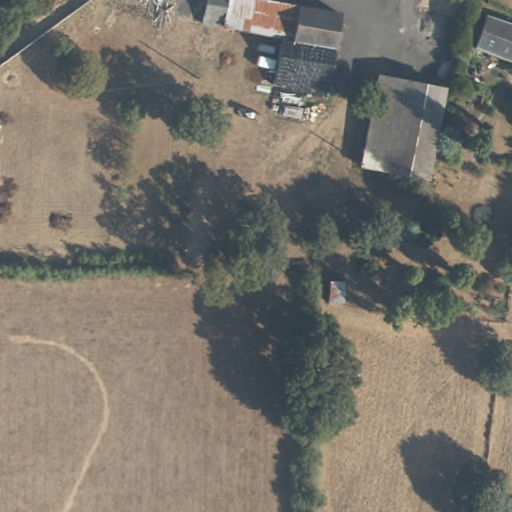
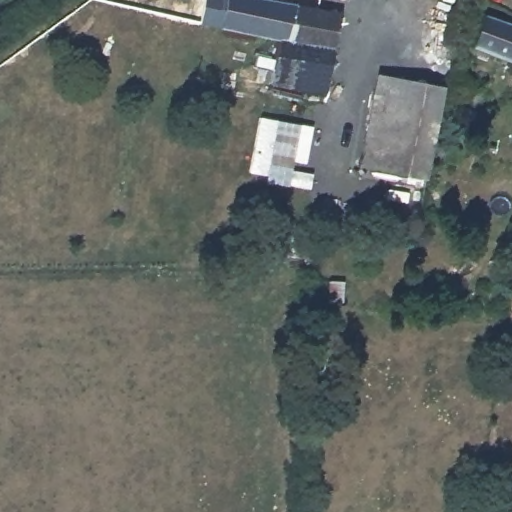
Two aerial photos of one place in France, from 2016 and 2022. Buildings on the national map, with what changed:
unchanged [(205,0),(316,0),(343,5),(338,41),(297,34),(298,29),(283,26),(203,12),(205,0)]
unchanged [(462,47),(474,12),(512,26),(512,65),(462,47)]
unchanged [(332,89),(274,84),(283,26),(298,29),(297,34),(338,41),(332,89)]
unchanged [(449,76),(432,175),(357,165),(374,68),(449,76)]
unchanged [(464,105),(466,91),(481,93),(478,108),(464,105)]
new [(312,125),(305,163),(294,161),(293,170),(312,172),(309,190),(266,182),(267,175),(249,172),(260,117),(312,125)]

